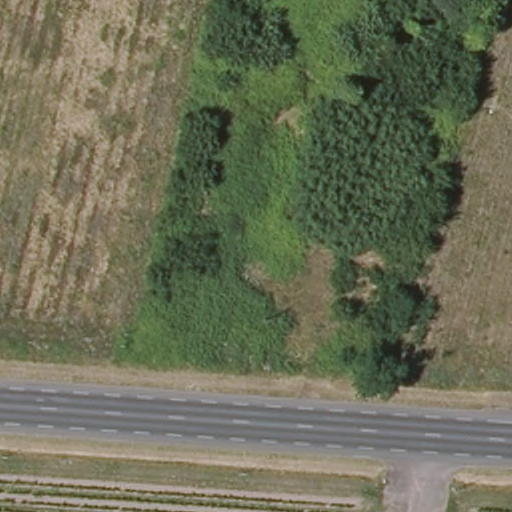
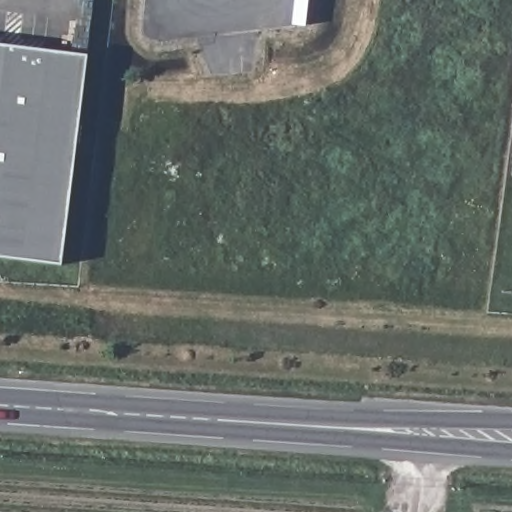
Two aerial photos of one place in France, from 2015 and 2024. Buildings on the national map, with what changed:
new [(87,59),(60,263),(0,256),(0,47),(87,59)]

